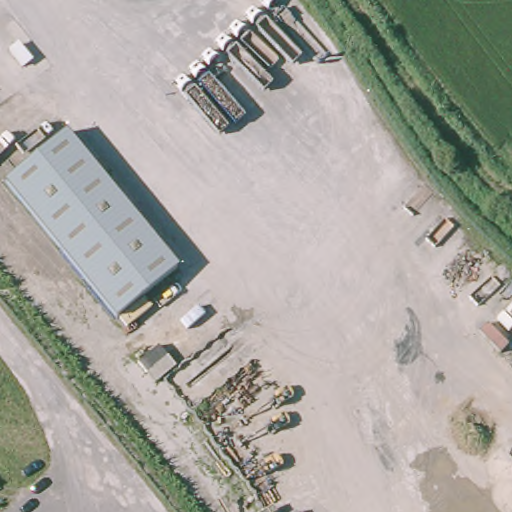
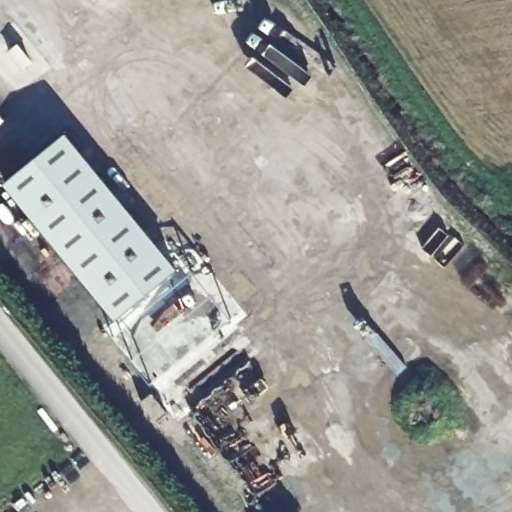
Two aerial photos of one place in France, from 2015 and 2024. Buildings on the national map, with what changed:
unchanged [(67,131),(180,267),(112,322),(0,186),(0,185),(67,131)]

